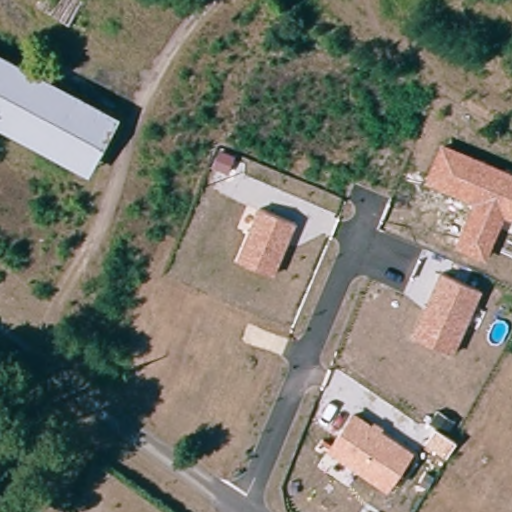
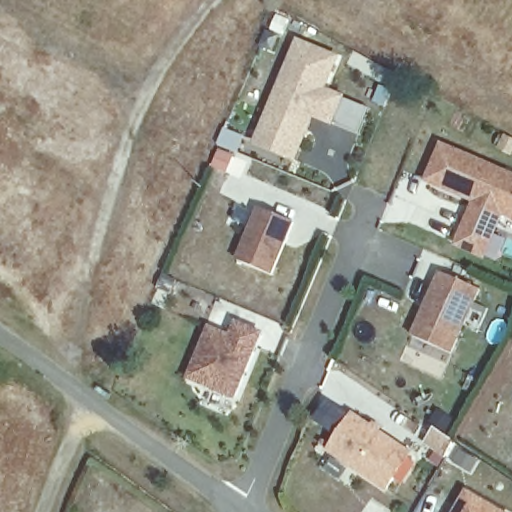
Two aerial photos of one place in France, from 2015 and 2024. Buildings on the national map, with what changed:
new [(312,119),(296,161),(252,145),(296,40),(338,57),(326,89),(343,96),(331,126),(312,119)]
demolished [(116,120),(87,176),(0,130),(0,60),(116,120)]
unchanged [(423,180),(440,141),(512,171),(512,220),(503,217),(485,260),(455,246),(472,202),(423,180)]
unchanged [(257,207),(295,222),(273,274),(236,258),(257,207)]
unchanged [(439,272),(482,290),(452,355),(411,335),(439,272)]
new [(234,397),(187,378),(208,327),(229,337),(235,322),(262,333),(234,397)]
unchanged [(415,452),(387,491),(326,448),(352,412),(415,452)]
unchanged [(467,487),(509,512),(453,512),(467,487)]

